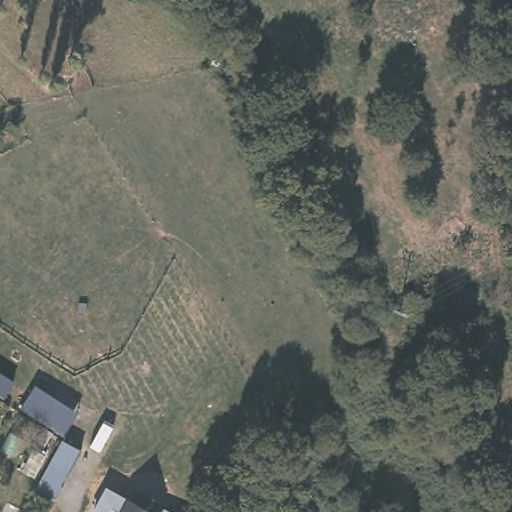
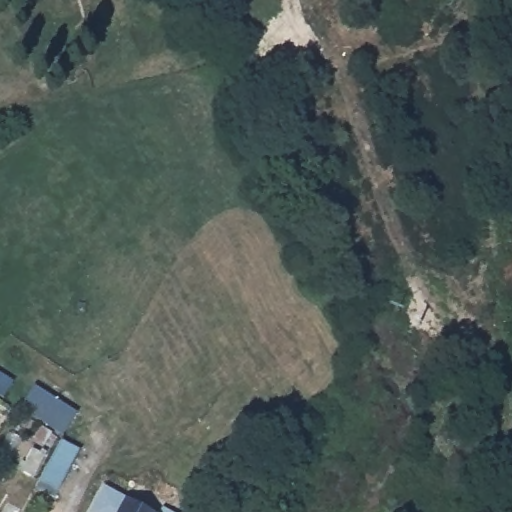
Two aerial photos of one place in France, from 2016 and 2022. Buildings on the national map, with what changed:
unchanged [(20,473),(32,449),(53,461),(63,442),(83,452),(59,494),(20,473)]
unchanged [(103,492),(138,512),(92,512),(103,492)]

